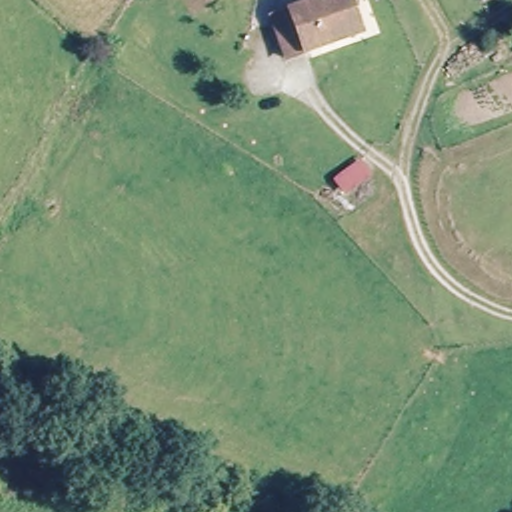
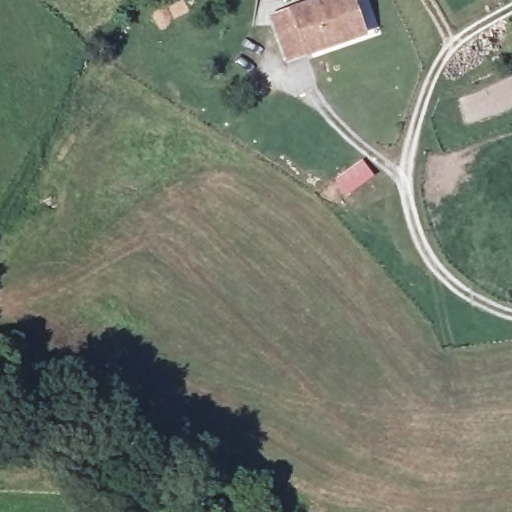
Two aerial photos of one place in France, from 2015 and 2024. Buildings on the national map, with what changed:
unchanged [(350,1),(363,41),(296,62),(282,22),(350,1)]

